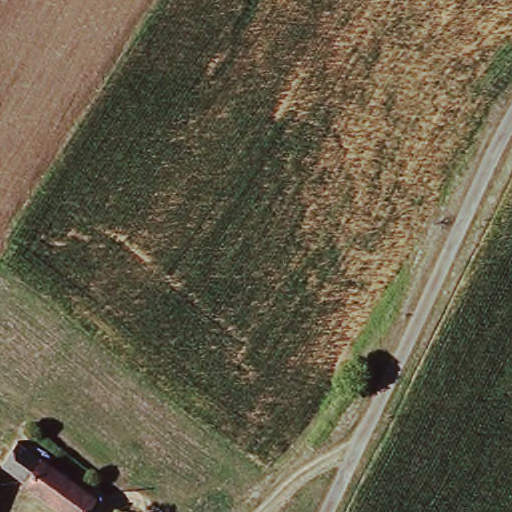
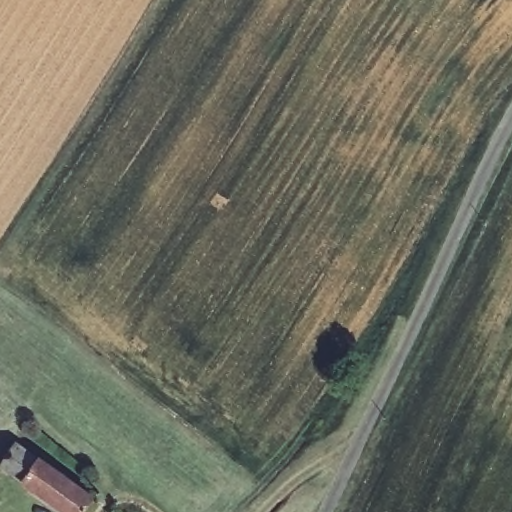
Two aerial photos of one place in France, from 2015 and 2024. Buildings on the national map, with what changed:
unchanged [(100,500),(91,512),(61,512),(4,472),(21,443),(100,500)]

